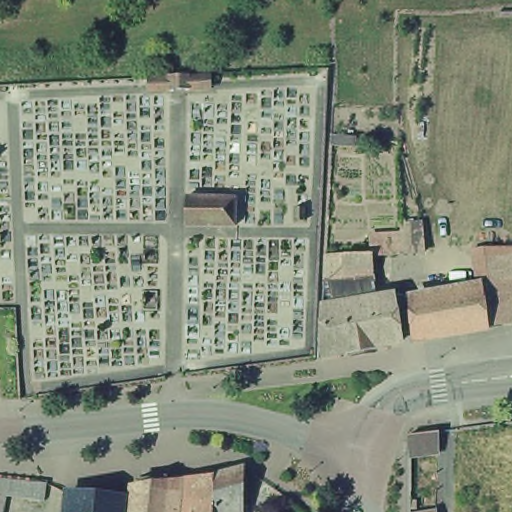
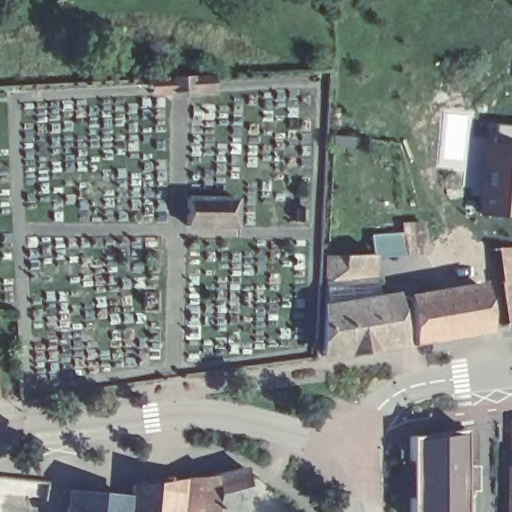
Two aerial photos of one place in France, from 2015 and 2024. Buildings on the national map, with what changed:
unchanged [(165,80),(211,77),(212,91),(150,94),(150,80),(165,80)]
new [(480,143),(493,145),(495,126),(512,127),(512,218),(479,216),(480,143)]
unchanged [(352,136),(351,147),(330,145),(330,134),(352,136)]
unchanged [(229,205),(227,233),(178,230),(180,202),(229,205)]
unchanged [(364,247),(380,246),(381,258),(365,259),(364,247)]
unchanged [(468,290),(461,254),(512,253),(512,258),(510,282),(468,290)]
unchanged [(394,346),(375,350),(371,350),(371,356),(345,359),(343,355),(315,360),(317,312),(317,293),(318,260),(365,258),(365,259),(366,282),(335,285),(336,292),(345,292),(345,303),(360,300),(361,305),(386,301),(394,346)]
unchanged [(506,327),(475,332),(468,290),(510,282),(506,327)]
unchanged [(400,303),(467,290),(468,290),(475,332),(403,345),(400,303)]
new [(409,512),(409,455),(410,435),(437,432),(457,430),(458,512),(409,512)]
unchanged [(232,512),(203,512),(202,479),(233,472),(232,512)]
unchanged [(47,483),(45,502),(10,497),(8,512),(0,512),(0,479),(47,483)]
unchanged [(203,512),(180,512),(181,482),(202,479),(203,512)]
unchanged [(180,512),(158,512),(160,485),(181,482),(180,512)]
unchanged [(112,503),(111,508),(118,510),(120,490),(160,485),(158,512),(55,512),(55,498),(112,503)]

